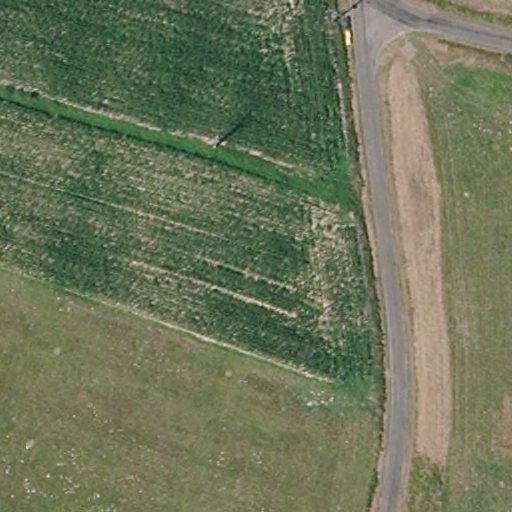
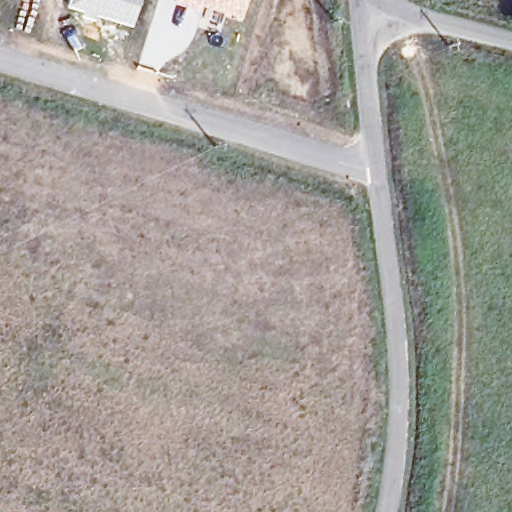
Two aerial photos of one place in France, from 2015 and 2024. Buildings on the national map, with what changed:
new [(68,0),(141,0),(132,29),(65,9),(68,0)]
new [(240,20),(195,6),(194,10),(172,3),(173,0),(246,0),(240,20)]

